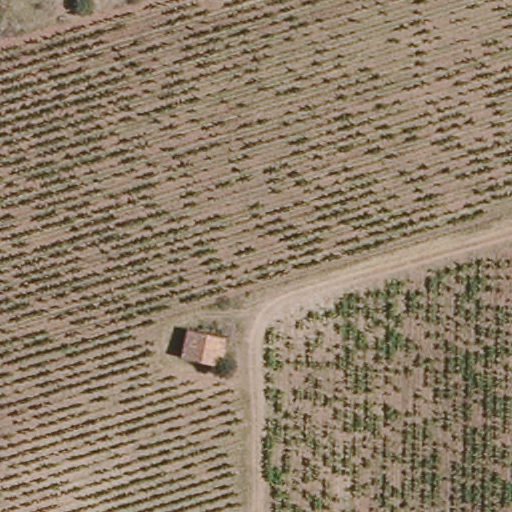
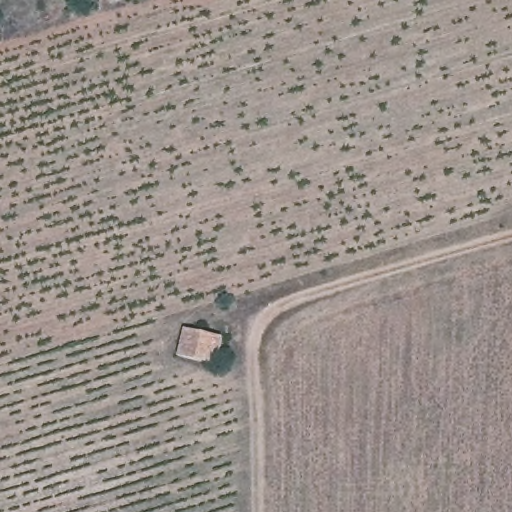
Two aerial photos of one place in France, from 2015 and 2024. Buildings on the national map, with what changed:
unchanged [(221,342),(217,365),(175,358),(179,334),(221,342)]

